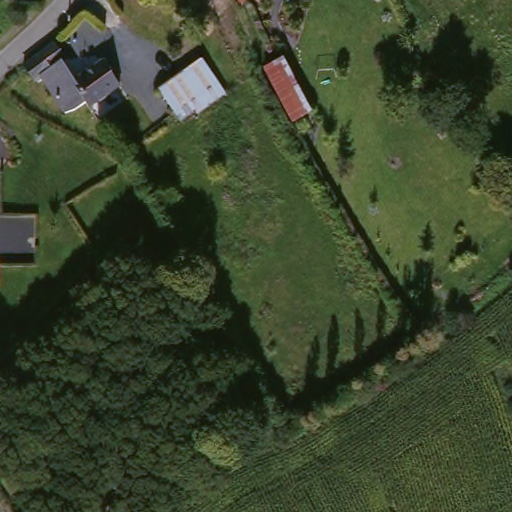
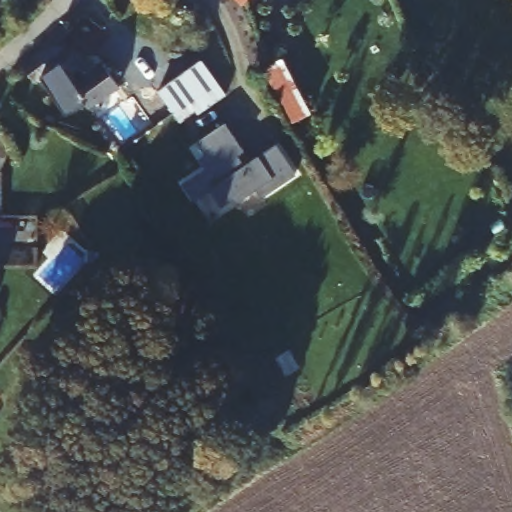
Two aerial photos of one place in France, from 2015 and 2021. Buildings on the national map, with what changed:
unchanged [(229,0),(249,0),(239,10),(229,0)]
unchanged [(114,92),(83,110),(81,106),(64,116),(56,116),(36,83),(29,88),(18,71),(47,52),(68,84),(98,65),(114,92)]
unchanged [(307,113),(289,123),(259,69),(278,58),(307,113)]
unchanged [(200,69),(216,92),(173,121),(157,98),(200,69)]
new [(205,173),(199,164),(205,159),(197,147),(224,128),(242,156),(236,160),(243,171),(257,161),(275,150),(295,179),(261,202),(255,193),(236,206),(233,202),(221,211),(210,195),(193,206),(182,189),(205,173)]

